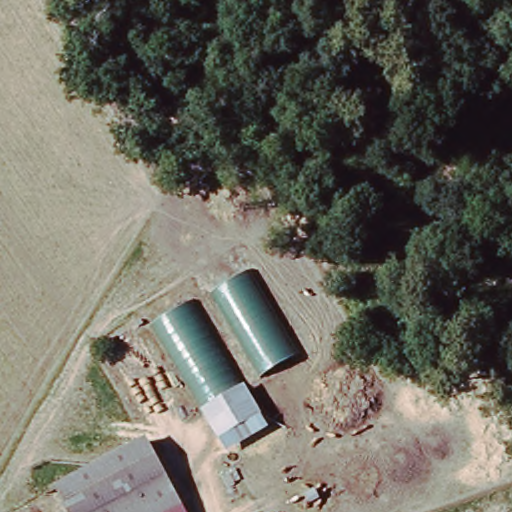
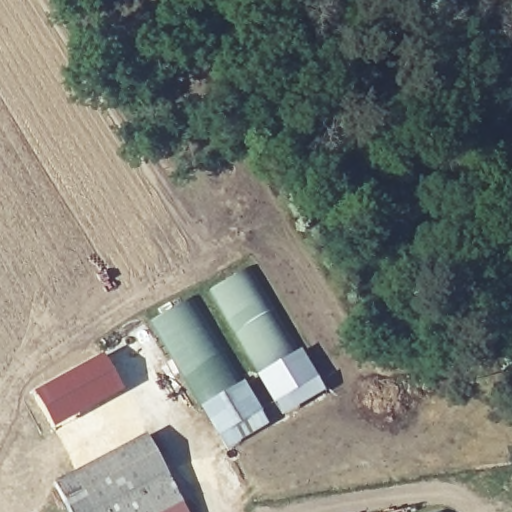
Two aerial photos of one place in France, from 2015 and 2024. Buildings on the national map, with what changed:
unchanged [(210,292),(254,268),(300,353),(259,375),(210,292)]
unchanged [(200,408),(204,406),(154,318),(189,300),(237,385),(243,382),(270,424),(226,451),(200,408)]
new [(256,376),(259,375),(300,353),(325,393),(281,418),(256,376)]
new [(107,354),(127,389),(55,432),(32,394),(107,354)]
unchanged [(146,512),(59,512),(45,486),(137,433),(174,497),(146,512)]
unchanged [(183,512),(146,512),(174,497),(183,512)]

